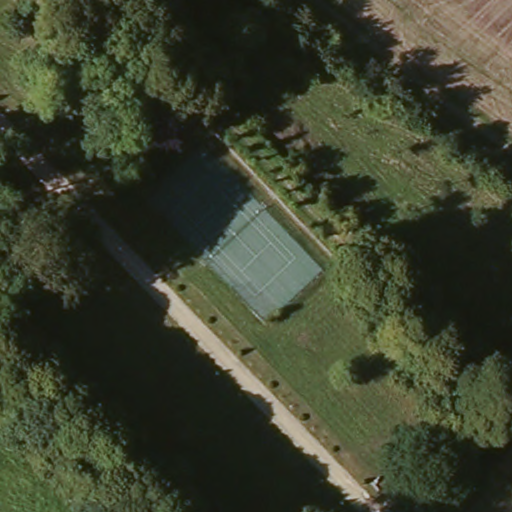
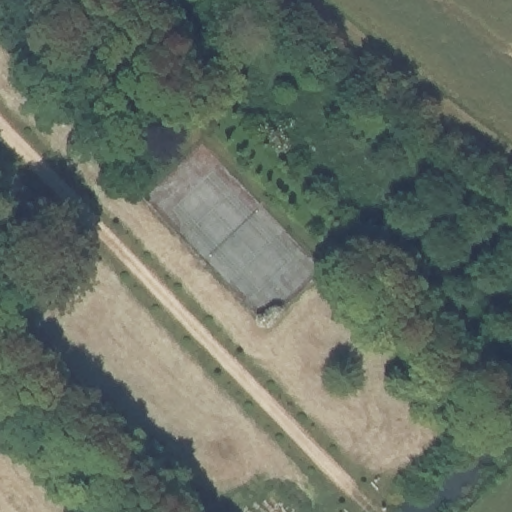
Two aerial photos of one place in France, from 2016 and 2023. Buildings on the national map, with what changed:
[]

